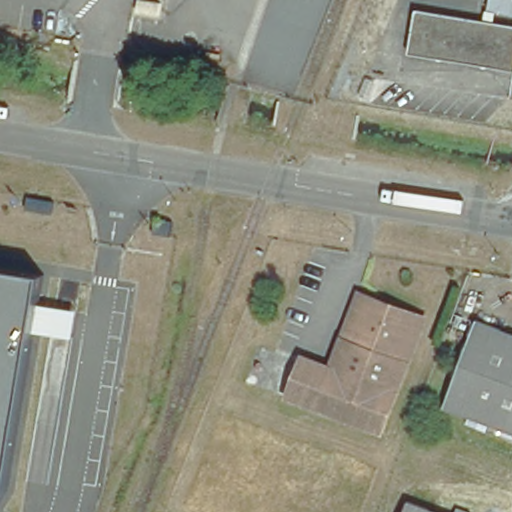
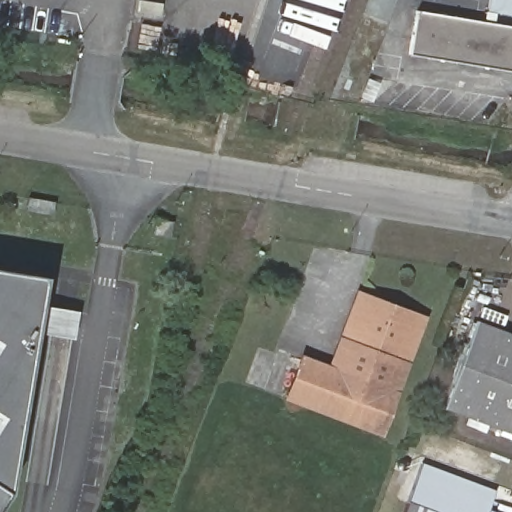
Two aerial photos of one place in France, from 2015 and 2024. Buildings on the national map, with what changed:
unchanged [(512,25),(512,64),(412,50),(419,12),(512,25)]
unchanged [(180,244),(159,239),(162,222),(183,226),(180,244)]
unchanged [(0,269),(46,276),(7,488),(0,500),(0,269)]
unchanged [(341,375),(372,300),(436,325),(390,443),(297,407),(312,365),(341,375)]
unchanged [(512,339),(512,438),(448,412),(481,328),(512,339)]
new [(415,505),(413,512),(404,512),(422,463),(496,490),(488,509),(496,512),(433,512),(415,505)]
unchanged [(415,505),(433,512),(413,512),(415,505)]
unchanged [(466,511),(468,512),(465,512),(466,511)]

